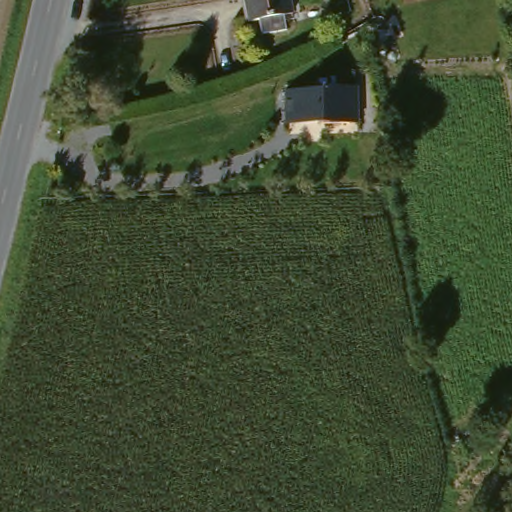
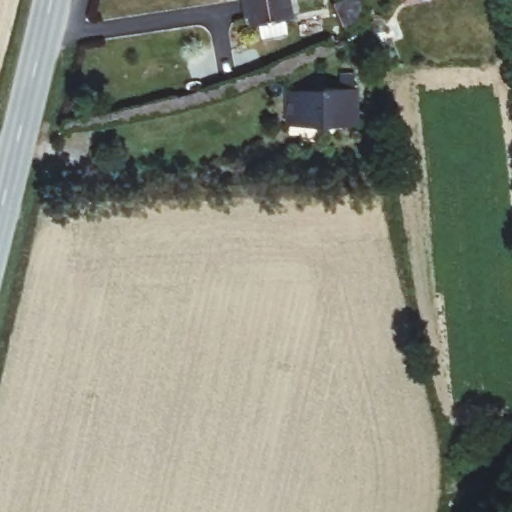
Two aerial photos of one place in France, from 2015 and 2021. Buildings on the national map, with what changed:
unchanged [(299,29),(274,35),(269,19),(259,21),(253,0),(301,0),(303,8),(294,10),(299,29)]
unchanged [(288,122),(288,86),(339,85),(339,69),(356,69),(358,85),(358,119),(288,122)]

